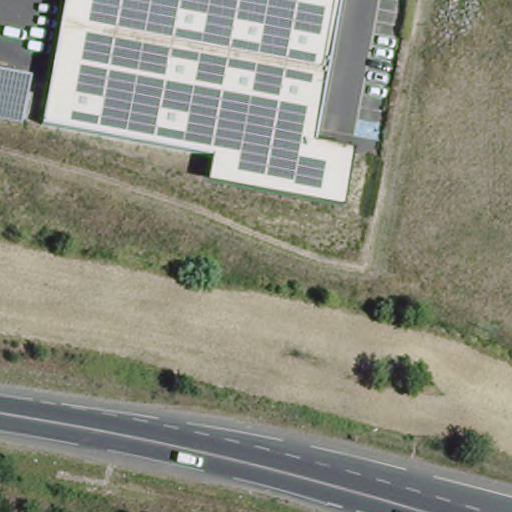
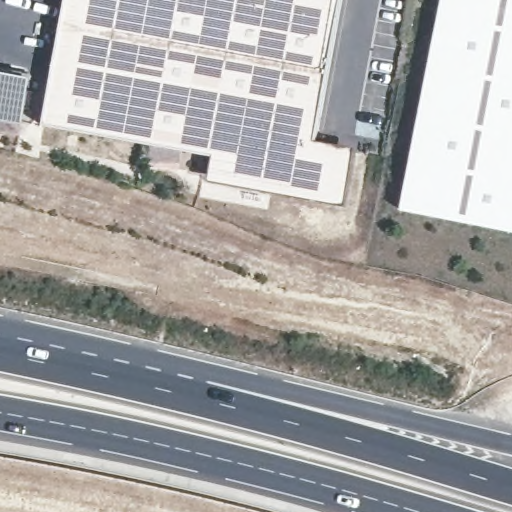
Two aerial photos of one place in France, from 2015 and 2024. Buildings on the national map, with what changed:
unchanged [(69,0),(347,0),(321,141),(359,147),(347,202),(213,179),(215,157),(47,124),(69,0)]
new [(512,232),(401,210),(442,0),(512,0),(512,232)]
unchanged [(33,76),(25,121),(0,116),(0,70),(33,76)]

